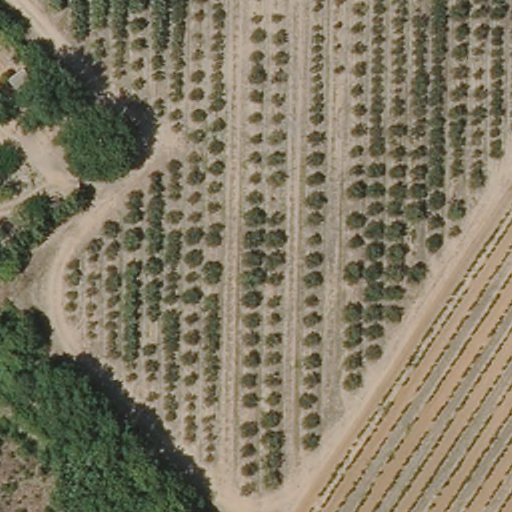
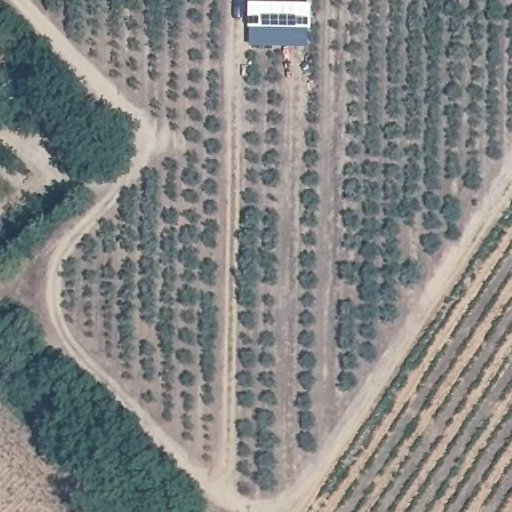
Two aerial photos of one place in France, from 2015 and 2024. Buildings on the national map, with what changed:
new [(311,4),(311,30),(309,29),(309,47),(251,47),(251,28),(250,29),(250,3),(311,4)]
unchanged [(25,68),(60,110),(41,122),(8,82),(25,68)]

